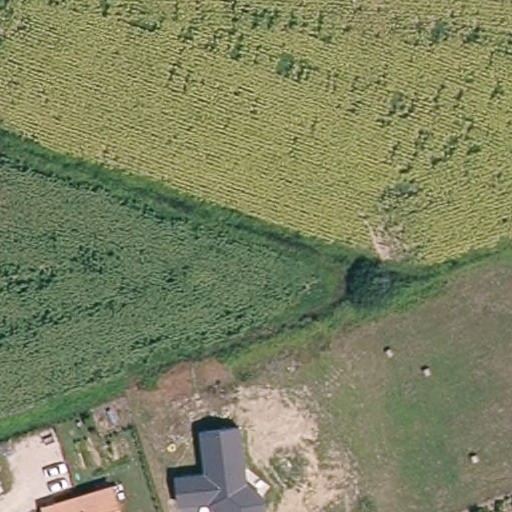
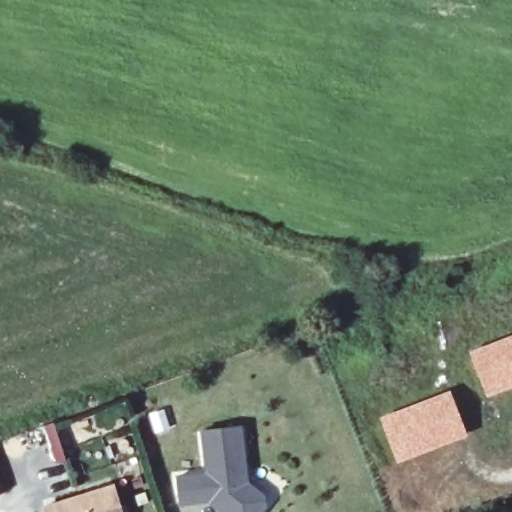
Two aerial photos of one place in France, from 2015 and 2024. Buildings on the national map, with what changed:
new [(512,386),(487,397),(469,350),(512,334),(512,386)]
new [(450,388),(468,434),(397,462),(379,416),(450,388)]
unchanged [(207,502),(177,506),(174,475),(203,471),(199,430),(241,425),(247,482),(269,500),(259,512),(220,512),(207,502)]
unchanged [(122,512),(43,512),(41,506),(112,483),(122,512)]

